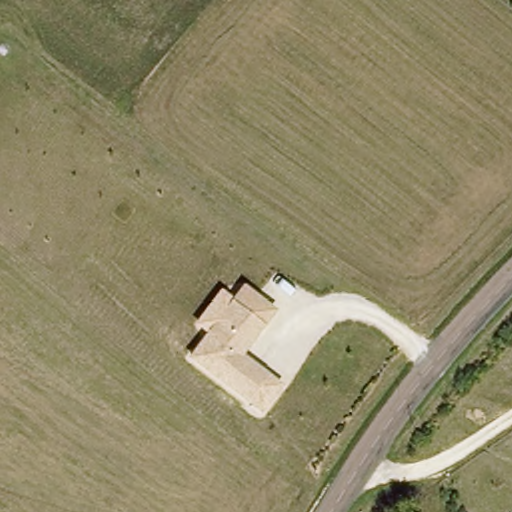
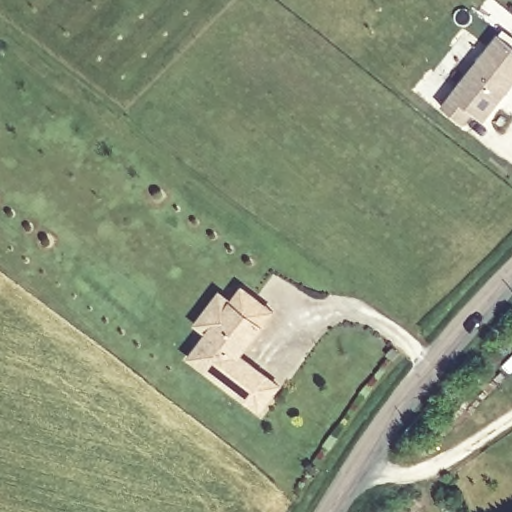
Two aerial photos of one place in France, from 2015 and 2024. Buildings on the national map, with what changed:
new [(512,44),(512,88),(486,120),(476,113),(466,125),(442,106),(499,34),(512,44)]
unchanged [(189,358),(207,333),(195,325),(221,289),(233,299),(244,284),(278,309),(242,356),(284,386),(263,414),(189,358)]

